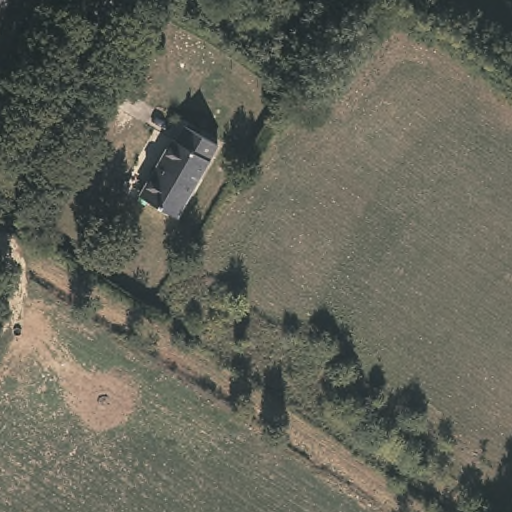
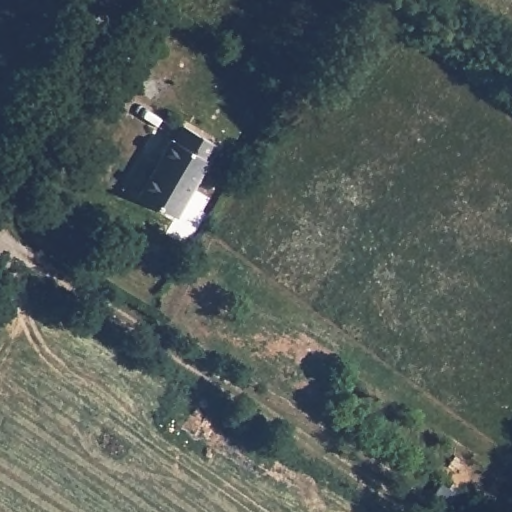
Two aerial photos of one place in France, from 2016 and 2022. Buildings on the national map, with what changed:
unchanged [(159,0),(174,0),(171,6),(159,0)]
unchanged [(218,151),(174,222),(134,198),(169,141),(176,142),(182,129),(218,151)]

